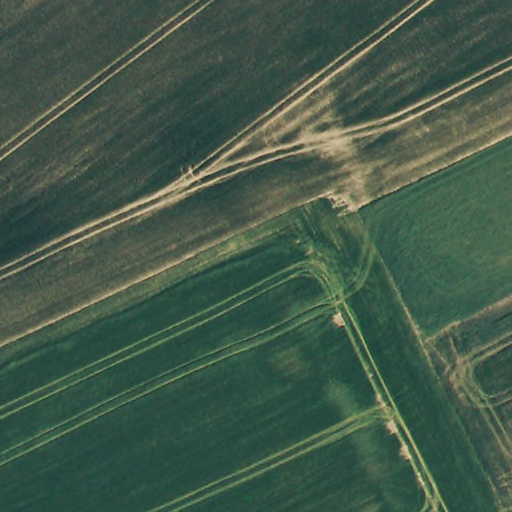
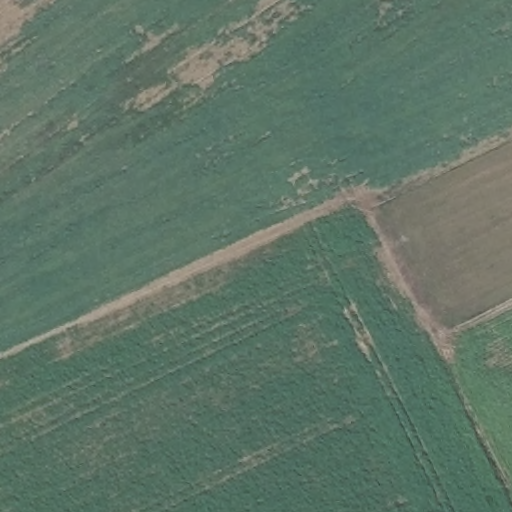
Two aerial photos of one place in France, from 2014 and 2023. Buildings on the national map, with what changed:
[]

